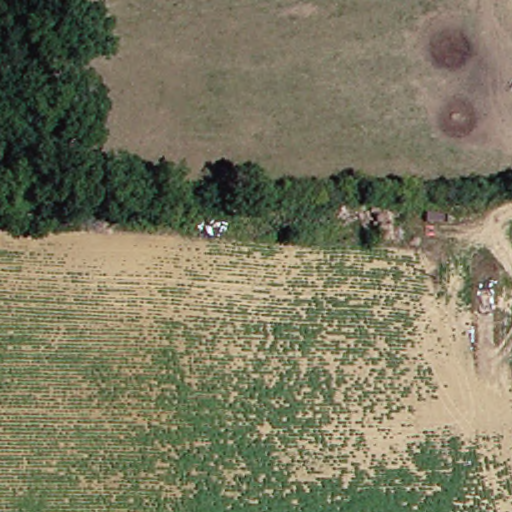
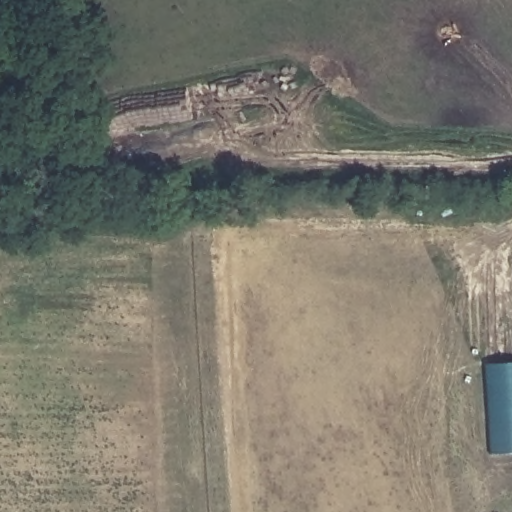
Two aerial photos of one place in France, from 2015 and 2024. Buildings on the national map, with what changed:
new [(512,364),(512,454),(491,456),(485,365),(512,364)]

